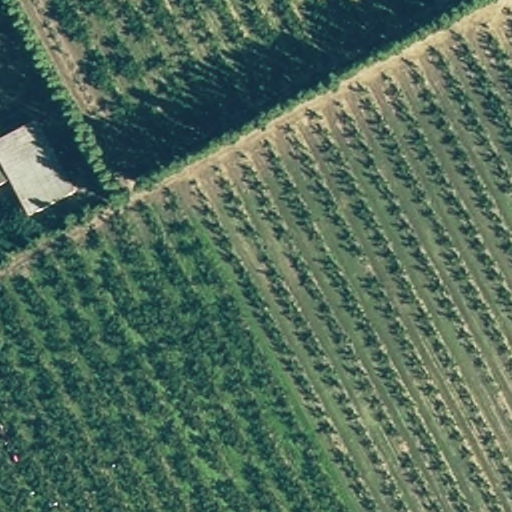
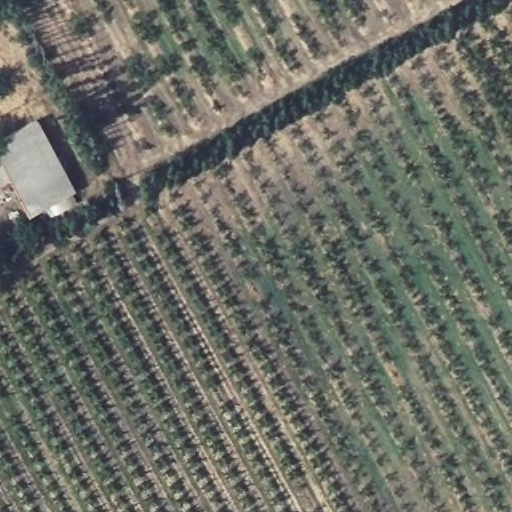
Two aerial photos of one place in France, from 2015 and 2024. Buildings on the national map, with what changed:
unchanged [(36,119),(77,192),(32,218),(12,182),(0,188),(0,139),(36,119)]

